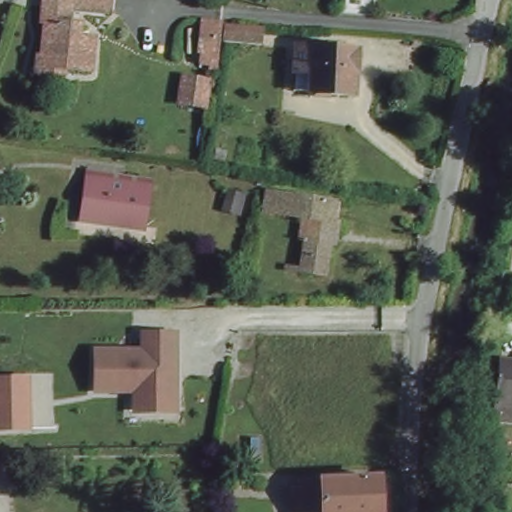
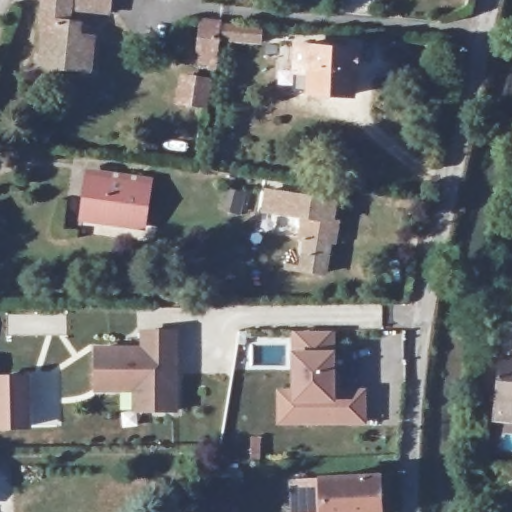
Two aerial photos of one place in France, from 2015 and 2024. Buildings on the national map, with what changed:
unchanged [(70,12),(70,27),(78,27),(78,39),(96,38),(97,43),(93,43),(93,66),(96,65),(96,70),(71,70),(71,76),(33,77),(33,72),(38,72),(38,61),(45,61),(46,29),(39,29),(40,0),(108,0),(105,15),(70,12)]
unchanged [(223,21),(218,63),(203,62),(205,45),(198,44),(200,19),(223,21)]
unchanged [(264,27),(262,42),(226,41),(228,24),(264,27)]
unchanged [(292,72),(294,44),(338,47),(338,38),(356,39),(356,68),(351,68),(349,94),(305,91),(291,90),(292,72)]
unchanged [(200,82),(198,98),(188,97),(191,81),(200,82)]
unchanged [(90,202),(93,179),(155,187),(150,225),(123,221),(89,216),(90,202)]
unchanged [(339,198),(337,211),(343,213),(338,235),(331,234),(327,266),(304,261),(310,231),(301,229),(304,213),(265,206),(269,187),(339,198)]
unchanged [(133,387),(94,388),(94,348),(141,347),(141,330),(173,330),(173,408),(143,409),(133,409),(133,387)]
new [(291,391),(291,351),(291,333),(336,333),(336,352),(336,392),(366,389),(366,424),(275,425),(276,389),(291,391)]
unchanged [(495,421),(496,403),(500,361),(512,362),(512,423),(495,421)]
unchanged [(31,429),(0,429),(0,376),(30,375),(31,429)]
unchanged [(395,512),(306,512),(304,484),(394,478),(395,512)]

